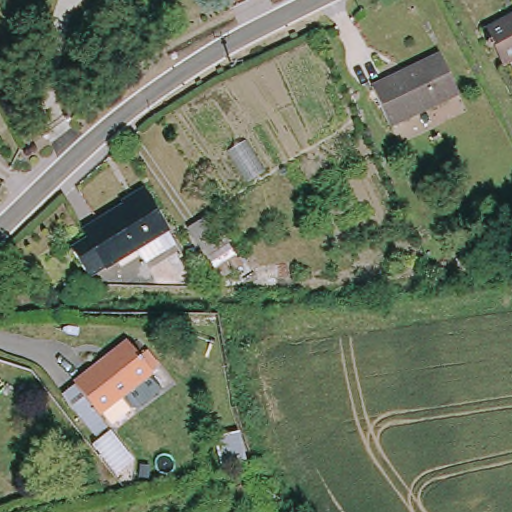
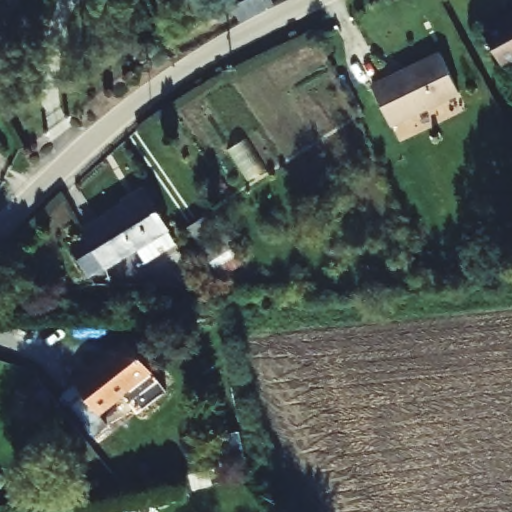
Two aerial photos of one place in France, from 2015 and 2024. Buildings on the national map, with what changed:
unchanged [(487,40),(482,30),(512,13),(512,60),(502,66),(492,47),(487,49),(483,42),(487,40)]
unchanged [(395,122),(375,82),(445,48),(464,90),(395,122)]
unchanged [(171,255),(150,267),(139,252),(92,279),(75,251),(135,217),(131,210),(151,198),(155,205),(172,233),(182,249),(171,255)]
unchanged [(202,241),(187,218),(211,202),(226,226),(202,241)]
unchanged [(235,244),(212,258),(205,247),(228,232),(235,244)]
unchanged [(154,372),(97,416),(72,384),(128,341),(154,372)]
unchanged [(213,437),(239,431),(247,461),(220,466),(213,437)]

